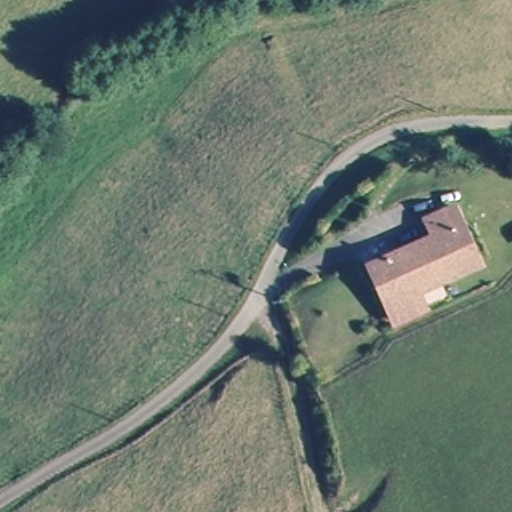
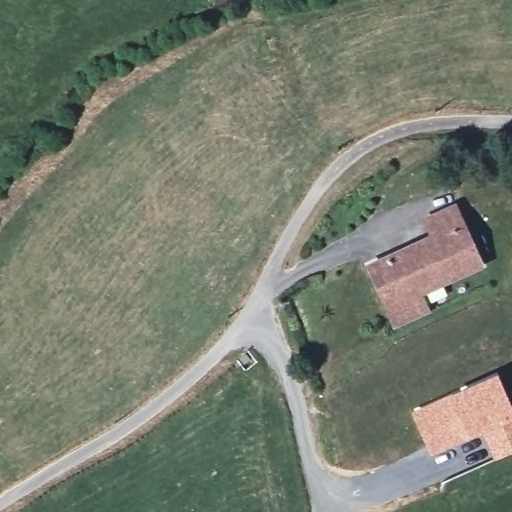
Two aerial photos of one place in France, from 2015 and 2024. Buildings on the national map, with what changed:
unchanged [(403,323),(396,307),(376,266),(440,237),(433,220),(460,208),(488,266),(424,295),(431,310),(403,323)]
new [(512,405),(512,453),(494,460),(481,434),(431,455),(410,411),(496,372),(512,405)]

